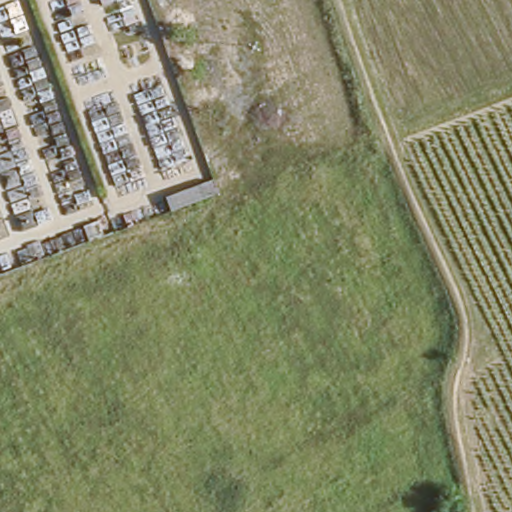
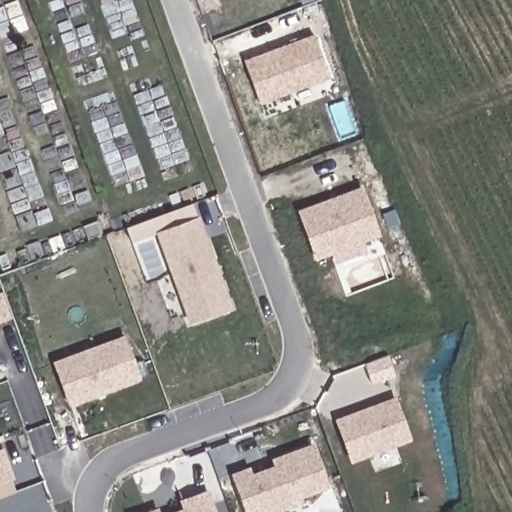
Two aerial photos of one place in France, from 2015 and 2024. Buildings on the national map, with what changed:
new [(313,35),(328,79),(261,104),(245,60),(313,35)]
new [(338,259),(332,251),(317,256),(301,210),(318,204),(349,193),(368,186),(380,234),(365,239),(366,250),(338,259)]
new [(202,213),(235,303),(191,319),(157,229),(202,213)]
new [(127,333),(142,374),(72,400),(57,359),(127,333)]
new [(397,396),(412,437),(353,458),(338,417),(397,396)]
new [(253,473),(277,464),(277,457),(285,454),(316,443),(331,483),(302,494),(305,499),(269,512),(249,512),(235,472),(251,466),(253,473)]
new [(4,447),(8,459),(14,475),(0,481),(0,449),(4,447)]
new [(189,506),(186,497),(193,495),(211,488),(220,512),(173,512),(189,506)]
new [(162,512),(144,512),(161,506),(162,512)]

